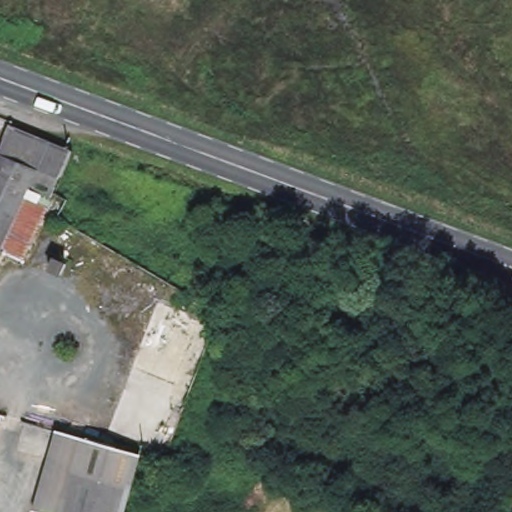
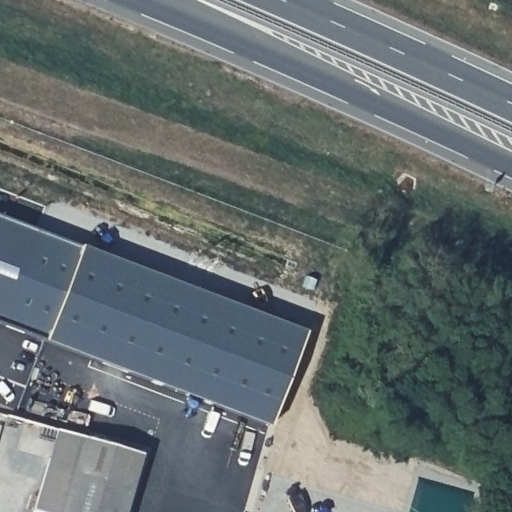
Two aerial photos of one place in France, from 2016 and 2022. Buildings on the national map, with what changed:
demolished [(70,150),(52,193),(22,257),(2,247),(0,251),(0,144),(9,125),(70,150)]
new [(268,425),(0,324),(0,217),(304,332),(268,425)]
demolished [(67,261),(61,273),(50,268),(55,255),(67,261)]
demolished [(216,322),(170,451),(111,432),(162,299),(216,322)]
unchanged [(82,436),(140,453),(132,480),(131,487),(123,512),(59,512),(81,437),(82,436)]

